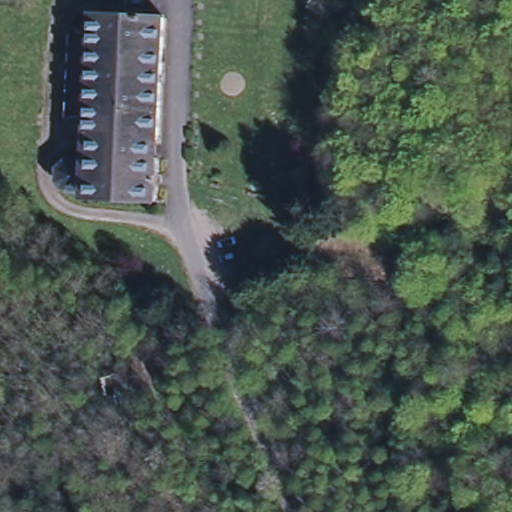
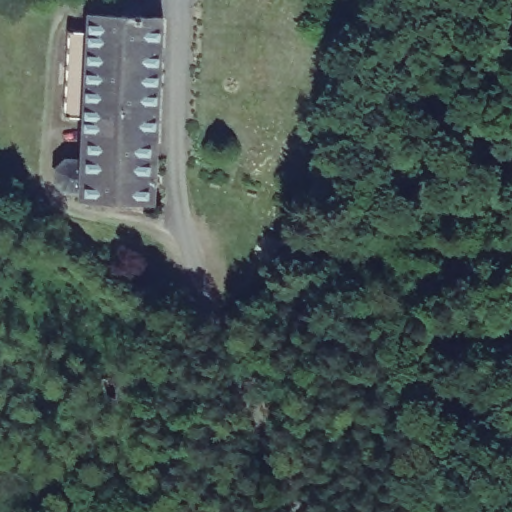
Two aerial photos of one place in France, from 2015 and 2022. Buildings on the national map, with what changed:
unchanged [(97,25),(98,11),(168,14),(164,132),(157,133),(156,154),(96,150),(97,132),(92,131),(93,113),(71,110),(73,25),(97,25)]
unchanged [(163,155),(161,197),(89,194),(89,189),(71,187),(64,180),(60,169),(61,165),(70,155),(90,156),(91,150),(96,150),(156,154),(163,155)]
unchanged [(123,373),(131,403),(111,410),(103,380),(123,373)]

